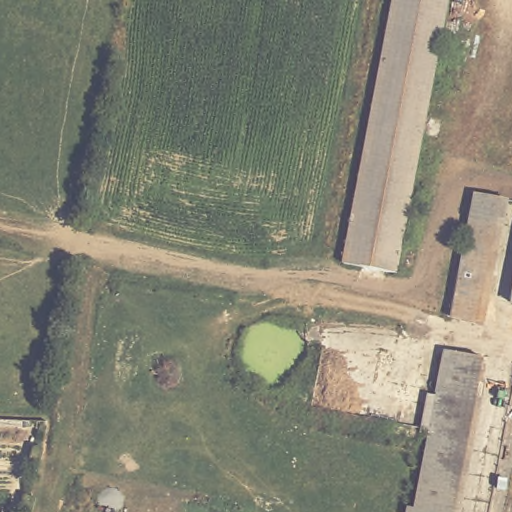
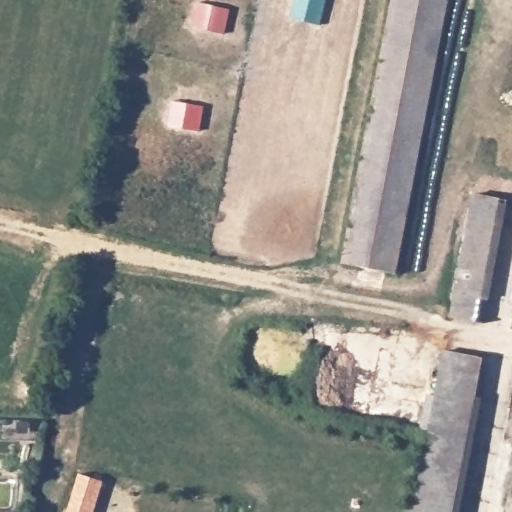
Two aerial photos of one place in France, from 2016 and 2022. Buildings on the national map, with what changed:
unchanged [(363,260),(361,272),(344,269),(395,0),(442,0),(394,265),(363,260)]
unchanged [(492,306),(459,300),(474,201),(507,206),(492,306)]
unchanged [(512,247),(512,330),(497,327),(512,247)]
unchanged [(453,512),(416,512),(431,429),(444,350),(480,355),(453,512)]
new [(80,473),(105,481),(95,512),(68,512),(80,473)]

